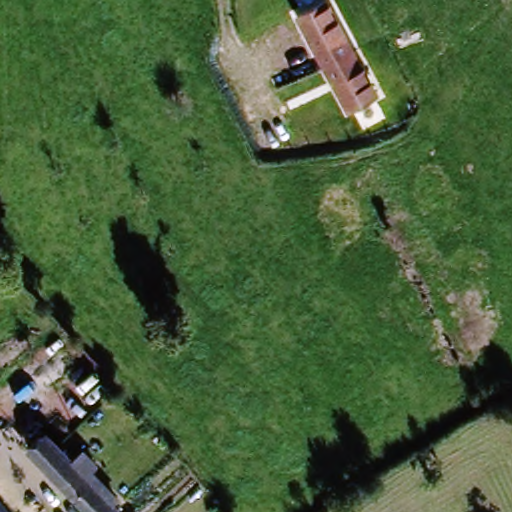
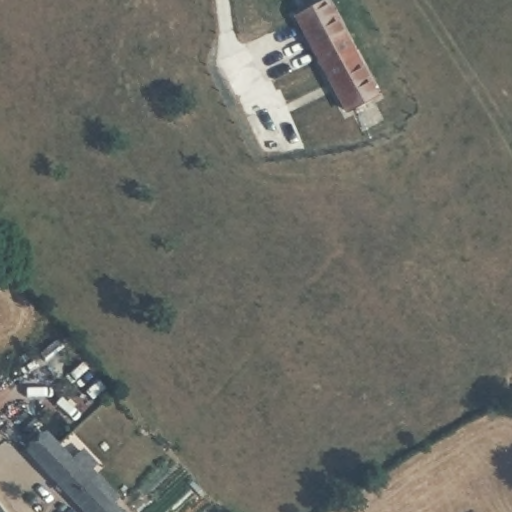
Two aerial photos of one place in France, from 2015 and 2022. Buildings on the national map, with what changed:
unchanged [(374,94),(346,109),(298,16),(328,1),(374,94)]
unchanged [(45,431),(57,442),(70,456),(82,444),(97,459),(90,465),(115,491),(110,497),(119,507),(114,512),(89,512),(27,446),(45,431)]
unchanged [(5,512),(0,512),(0,505),(5,512)]

